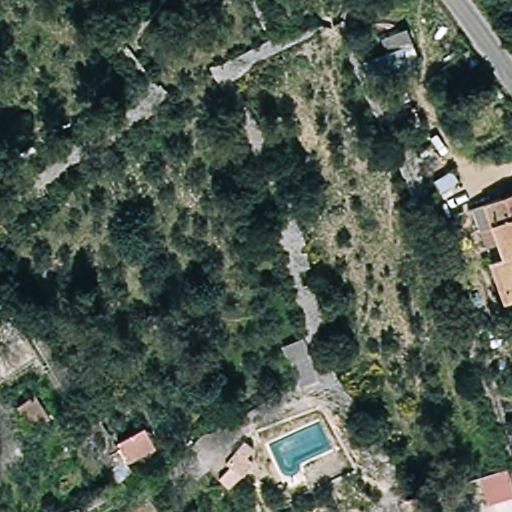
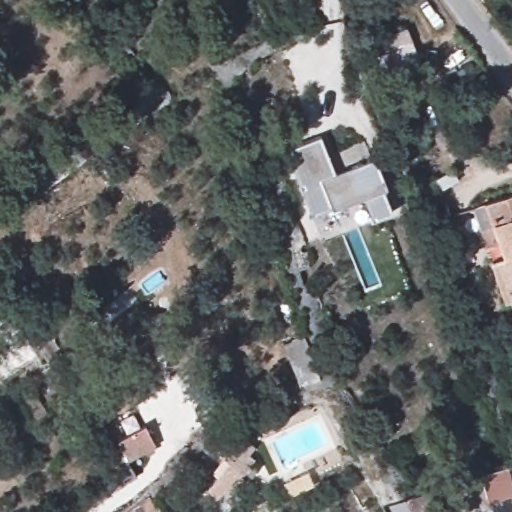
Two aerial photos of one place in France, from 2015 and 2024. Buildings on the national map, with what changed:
unchanged [(420,63),(380,79),(371,59),(388,52),(382,39),(407,29),(420,63)]
new [(285,150),(320,136),(335,173),(374,157),(386,189),(382,190),(391,213),(373,221),(363,198),(333,210),(331,207),(312,215),(285,150)]
unchanged [(506,236),(490,243),(477,201),(512,189),(512,252),(506,236)]
unchanged [(495,261),(512,254),(512,308),(495,261)]
unchanged [(319,380),(297,388),(280,345),(304,336),(319,380)]
unchanged [(66,429),(46,440),(32,413),(50,402),(66,429)]
unchanged [(137,428),(152,451),(127,467),(113,445),(137,428)]
unchanged [(248,443),(260,452),(253,462),(258,464),(250,479),(232,466),(248,443)]
unchanged [(417,512),(416,511),(436,502),(442,512),(417,512)]

